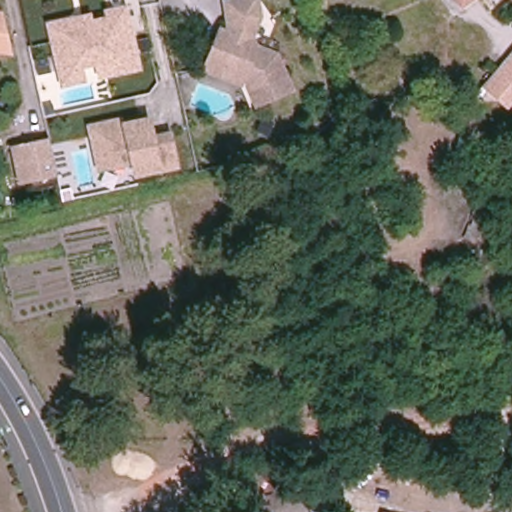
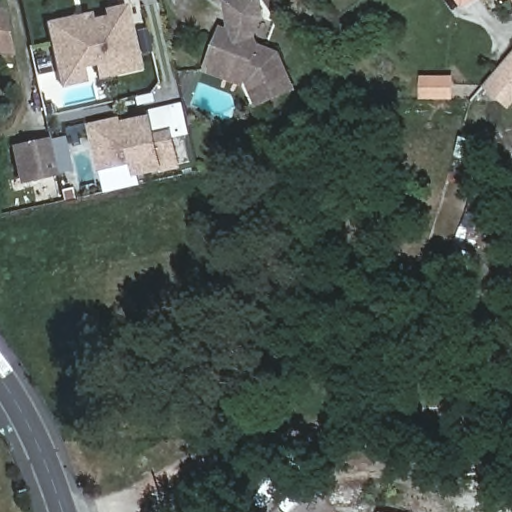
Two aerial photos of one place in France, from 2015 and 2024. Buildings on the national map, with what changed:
unchanged [(292,93),(257,108),(249,88),(245,82),(208,68),(219,40),(224,42),(229,28),(226,14),(225,5),(257,0),(260,20),(252,42),(256,50),(276,58),(292,93)]
unchanged [(464,0),(474,0),(467,4),(464,0)]
unchanged [(60,69),(50,23),(77,17),(88,15),(89,21),(110,16),(109,10),(125,7),(139,66),(101,74),(64,83),(60,69)]
unchanged [(10,54),(0,52),(0,16),(2,16),(10,54)]
unchanged [(508,110),(481,87),(512,52),(512,105),(508,110)]
unchanged [(450,98),(420,97),(420,77),(450,77),(450,98)]
unchanged [(269,135),(256,130),(262,117),(275,122),(269,135)]
unchanged [(154,137),(170,134),(177,165),(136,174),(135,165),(102,172),(91,126),(115,121),(122,120),(124,124),(150,118),(154,137)]
unchanged [(60,178),(25,186),(19,152),(52,145),(60,178)]

